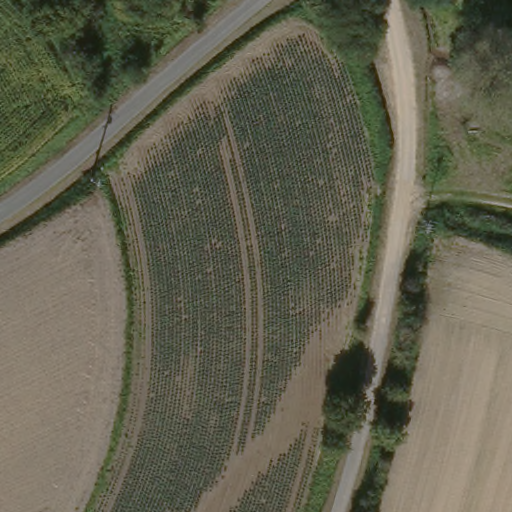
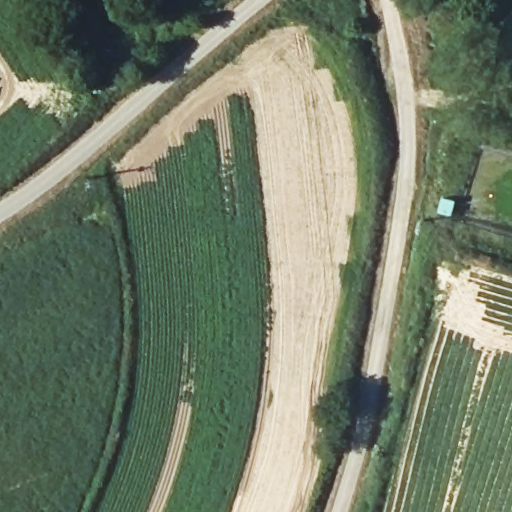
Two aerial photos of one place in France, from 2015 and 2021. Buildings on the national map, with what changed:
[]

